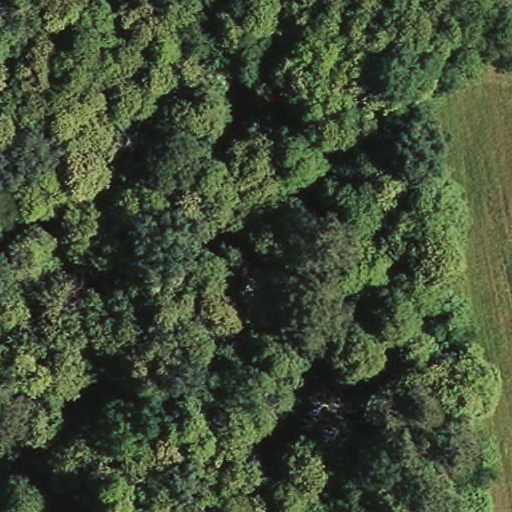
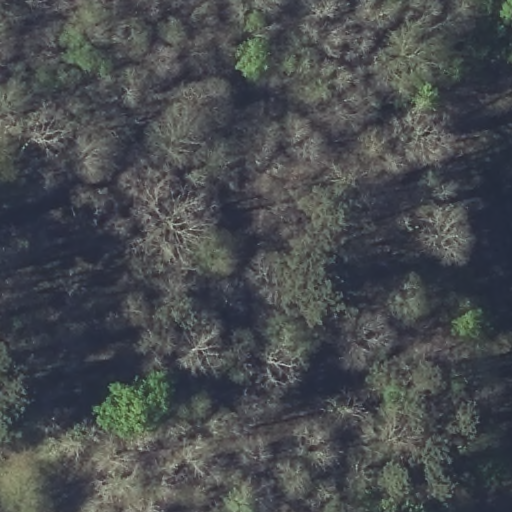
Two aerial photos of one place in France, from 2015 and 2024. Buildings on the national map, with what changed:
[]

